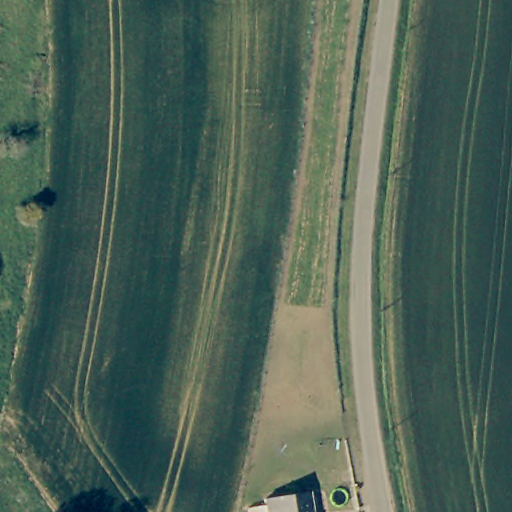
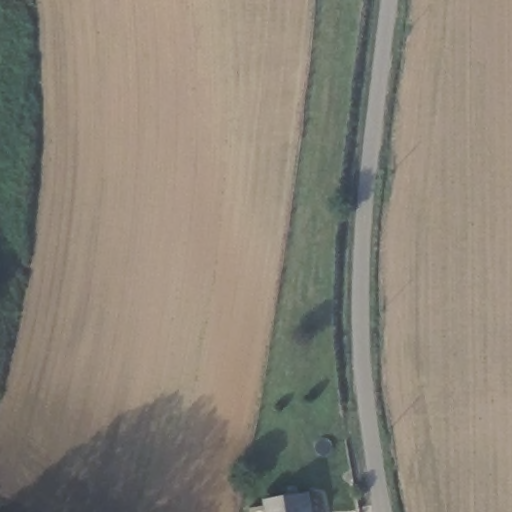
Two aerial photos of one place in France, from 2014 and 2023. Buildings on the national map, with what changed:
unchanged [(266,493),(307,488),(307,491),(310,512),(268,512),(266,496),(266,493)]

